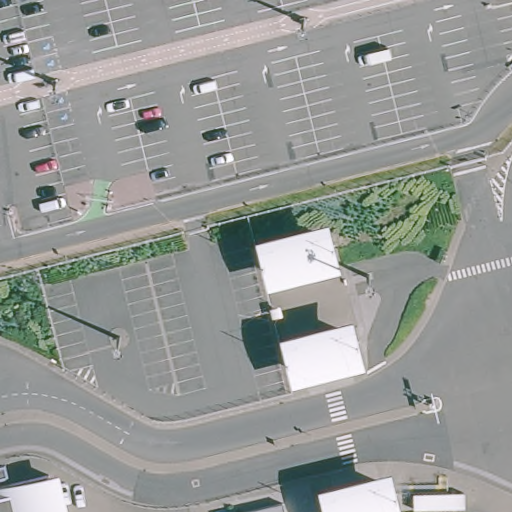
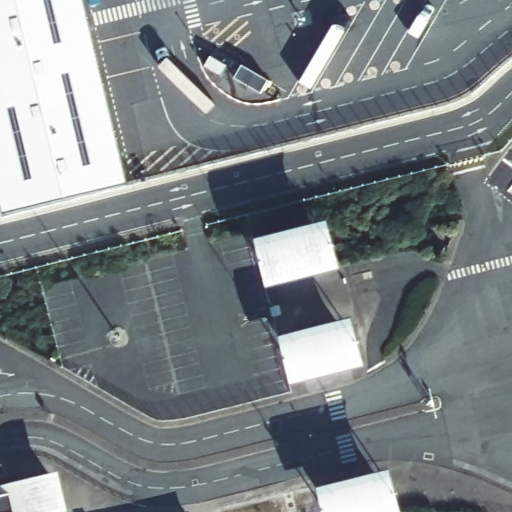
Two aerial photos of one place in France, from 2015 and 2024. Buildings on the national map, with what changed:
new [(0,0),(82,0),(126,185),(3,214),(0,202),(0,0)]
unchanged [(267,286),(253,239),(327,220),(339,268),(267,286)]
unchanged [(290,384),(277,336),(351,317),(363,365),(290,384)]
unchanged [(407,512),(322,512),(315,484),(392,460),(407,512)]
unchanged [(0,481),(43,472),(53,512),(0,512),(0,481)]
unchanged [(283,506),(284,512),(258,512),(283,506)]

